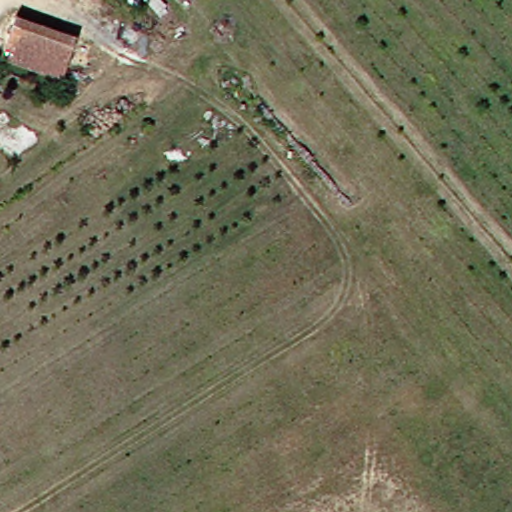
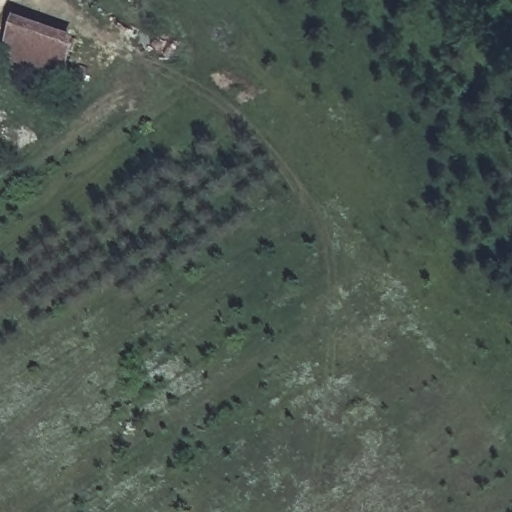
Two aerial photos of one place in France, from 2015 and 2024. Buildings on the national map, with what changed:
unchanged [(70,40),(57,83),(0,66),(0,59),(12,23),(70,40)]

